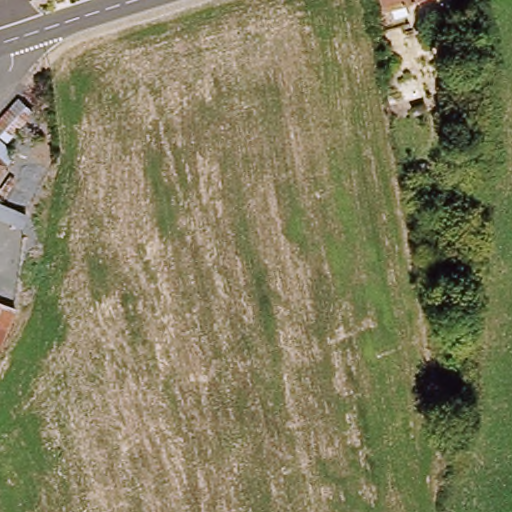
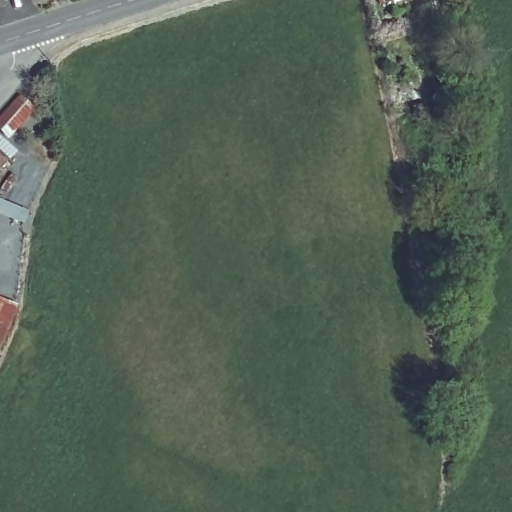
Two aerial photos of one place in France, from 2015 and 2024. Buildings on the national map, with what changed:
unchanged [(383,0),(396,0),(384,3),(383,0)]
unchanged [(444,15),(445,0),(456,0),(456,15),(444,15)]
unchanged [(0,126),(0,122),(22,99),(36,111),(12,137),(0,126)]
unchanged [(0,175),(0,135),(20,153),(0,175)]
unchanged [(0,349),(0,299),(20,306),(0,349)]

